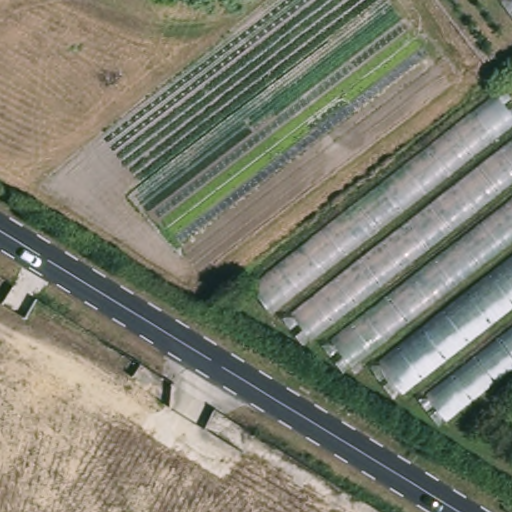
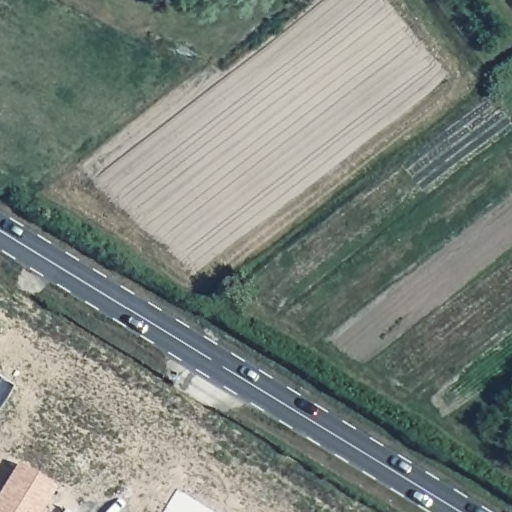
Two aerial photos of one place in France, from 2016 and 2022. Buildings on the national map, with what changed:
demolished [(270,316),(247,290),(496,97),(512,119),(512,127),(270,316)]
demolished [(305,343),(284,320),(512,143),(512,185),(305,343)]
demolished [(347,369),(327,345),(512,201),(512,244),(347,369)]
demolished [(399,394),(377,364),(512,260),(512,309),(399,394)]
demolished [(440,426),(422,398),(512,330),(512,371),(440,426)]
demolished [(95,493),(127,512),(82,512),(95,493)]

